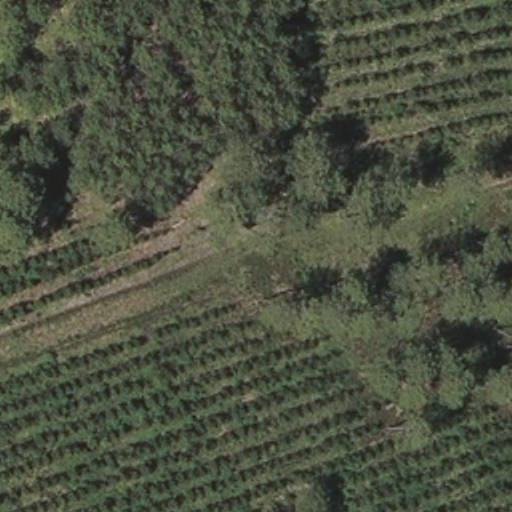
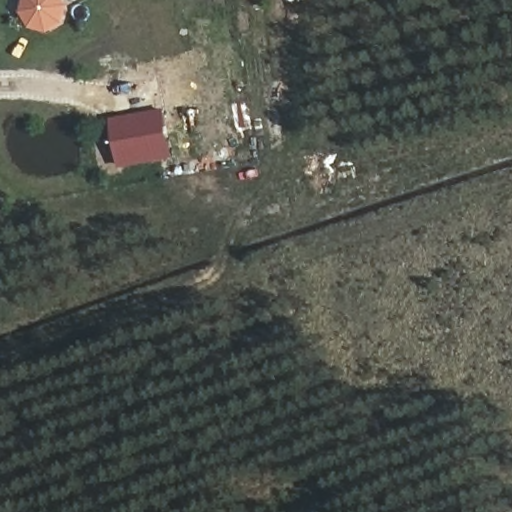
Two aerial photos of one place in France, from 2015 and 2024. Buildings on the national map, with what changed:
new [(62,24),(47,33),(29,28),(20,12),(23,0),(65,0),(69,6),(62,24)]
new [(119,169),(110,119),(164,109),(173,159),(119,169)]

